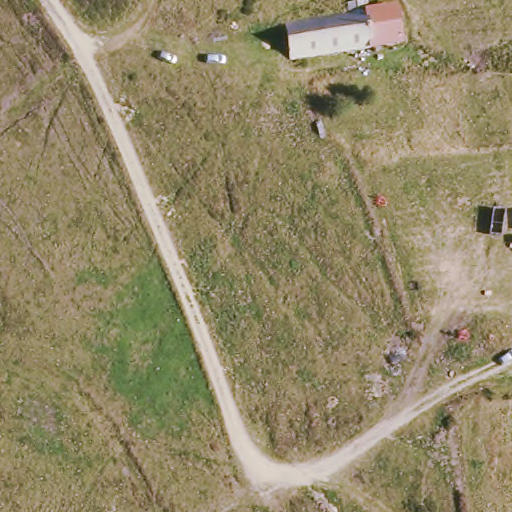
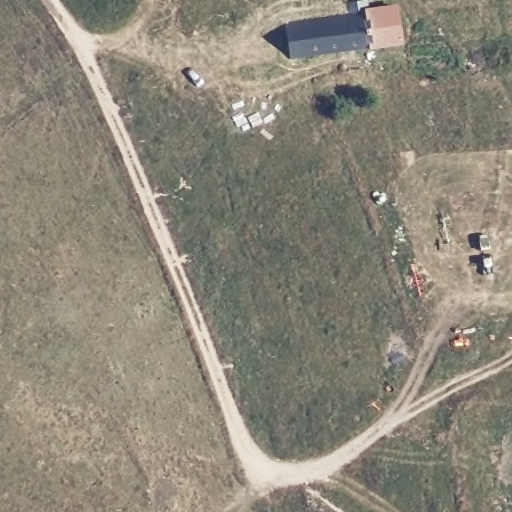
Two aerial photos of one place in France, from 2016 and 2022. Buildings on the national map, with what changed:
unchanged [(408,46),(290,63),(286,22),(346,13),(346,3),(367,0),(368,0),(371,11),(401,7),(408,46)]

